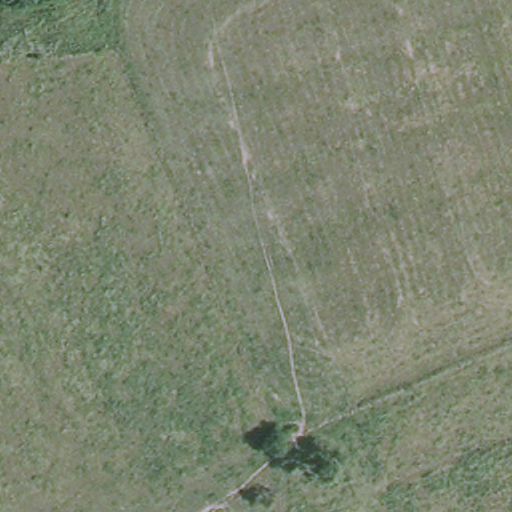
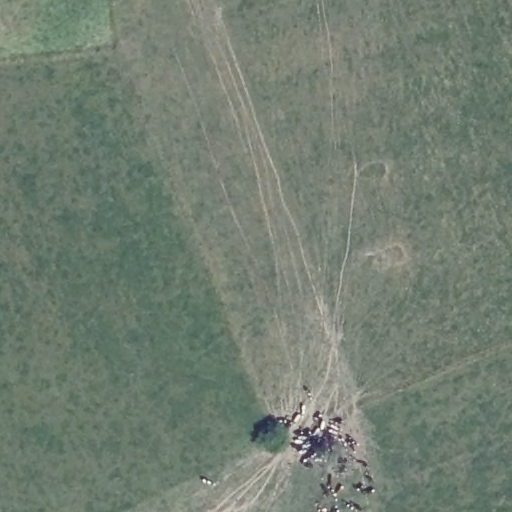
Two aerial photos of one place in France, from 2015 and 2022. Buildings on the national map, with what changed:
[]

